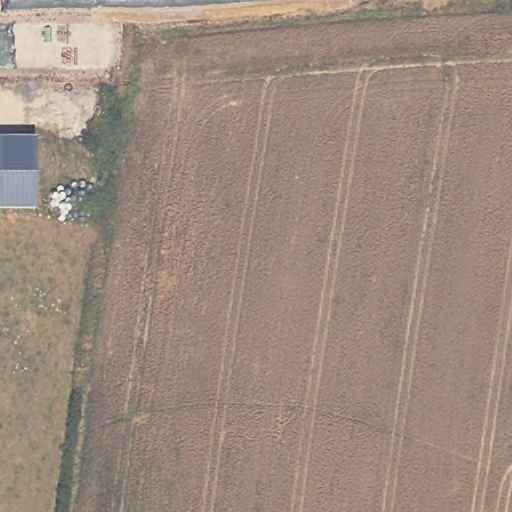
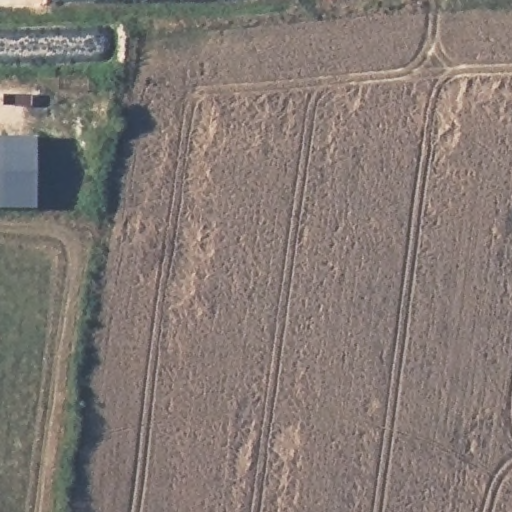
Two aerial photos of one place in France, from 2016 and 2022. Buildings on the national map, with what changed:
unchanged [(37,209),(0,208),(0,136),(37,136),(37,209)]

